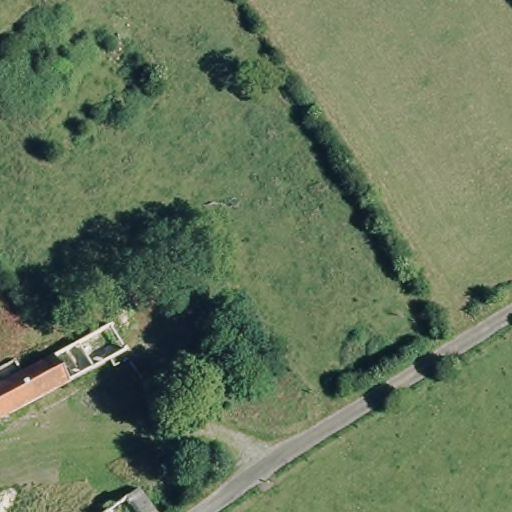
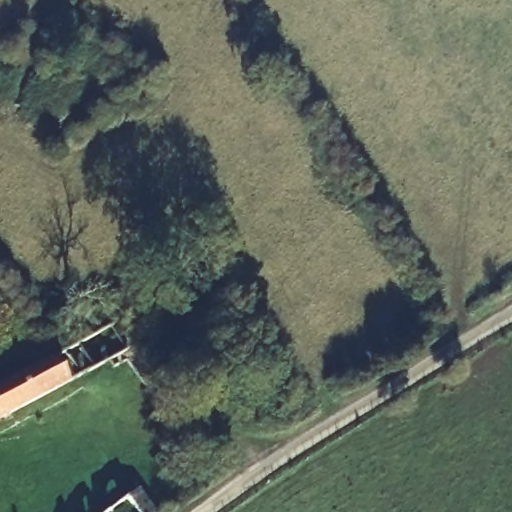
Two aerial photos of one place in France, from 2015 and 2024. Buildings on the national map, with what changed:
unchanged [(57,351),(65,347),(110,322),(132,354),(130,356),(116,363),(112,358),(72,379),(57,351)]
unchanged [(19,356),(26,368),(57,351),(72,379),(39,397),(17,358),(19,356)]
unchanged [(39,397),(10,413),(0,394),(0,366),(17,358),(39,397)]
unchanged [(10,413),(0,418),(0,394),(10,413)]

